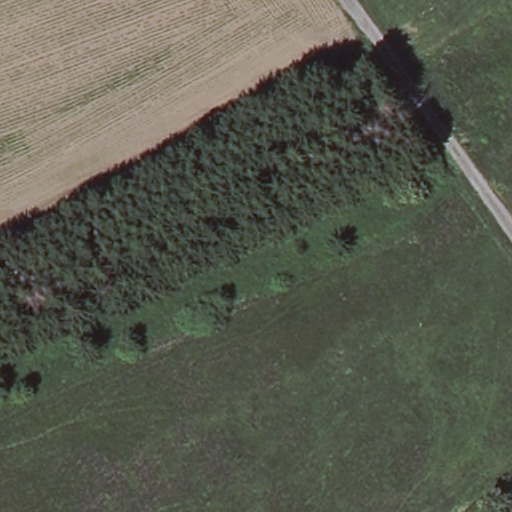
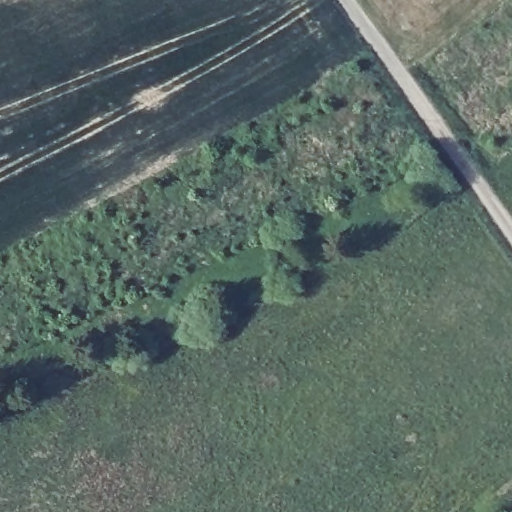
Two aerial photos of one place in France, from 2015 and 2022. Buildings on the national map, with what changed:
[]

